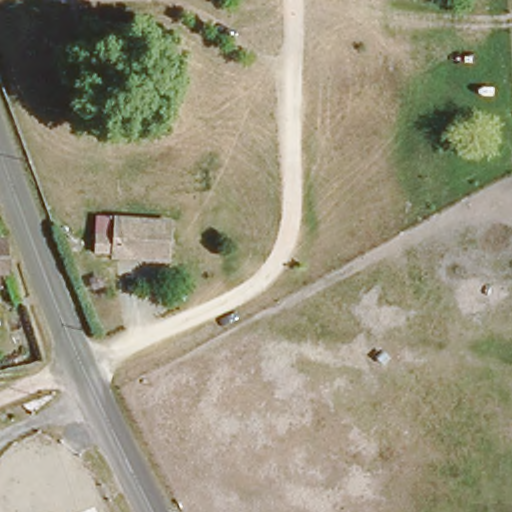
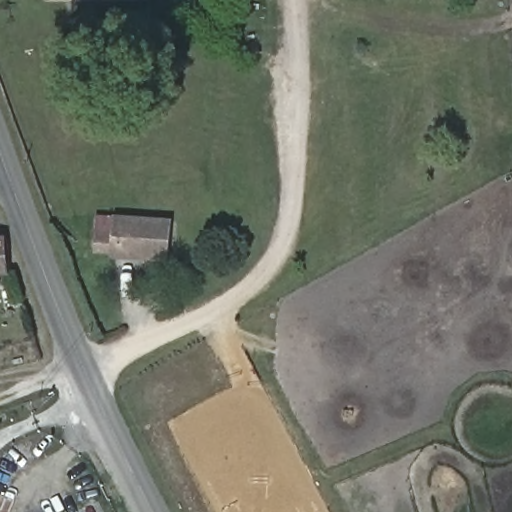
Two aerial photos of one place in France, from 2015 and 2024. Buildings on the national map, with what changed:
unchanged [(166,226),(164,244),(146,241),(145,257),(89,254),(92,236),(116,237),(118,227),(147,230),(148,225),(166,226)]
unchanged [(1,280),(0,279),(0,234),(6,234),(8,266),(1,268),(1,280)]

